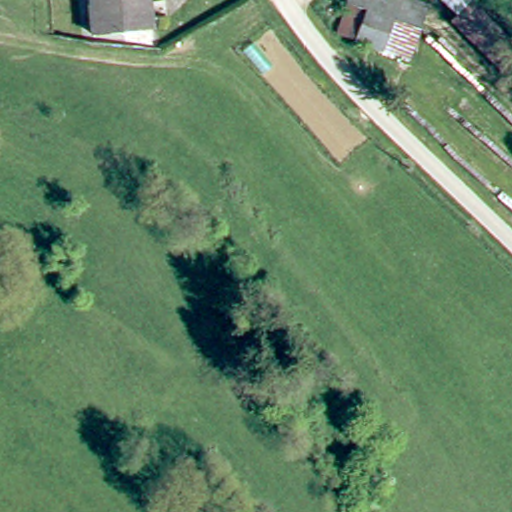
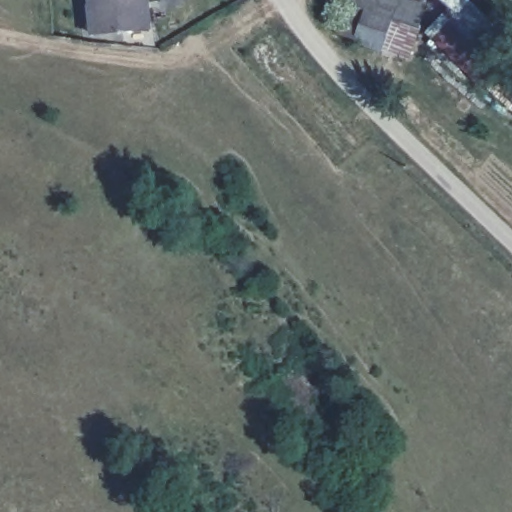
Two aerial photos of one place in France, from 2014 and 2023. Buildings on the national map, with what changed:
unchanged [(91,45),(91,38),(96,38),(91,0),(152,0),(153,31),(91,45)]
unchanged [(418,37),(348,10),(352,0),(418,0),(430,4),(418,37)]

